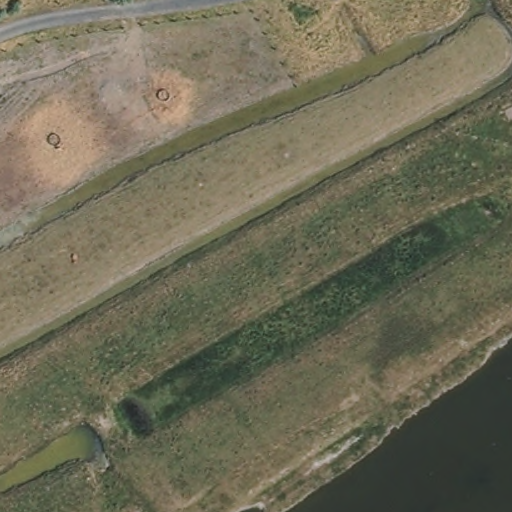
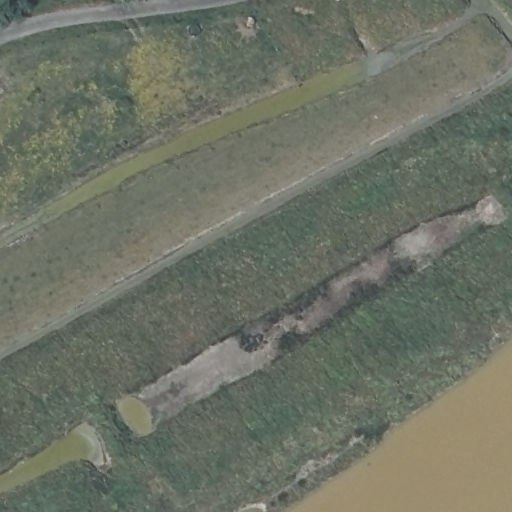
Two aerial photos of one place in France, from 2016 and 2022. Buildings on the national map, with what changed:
[]

